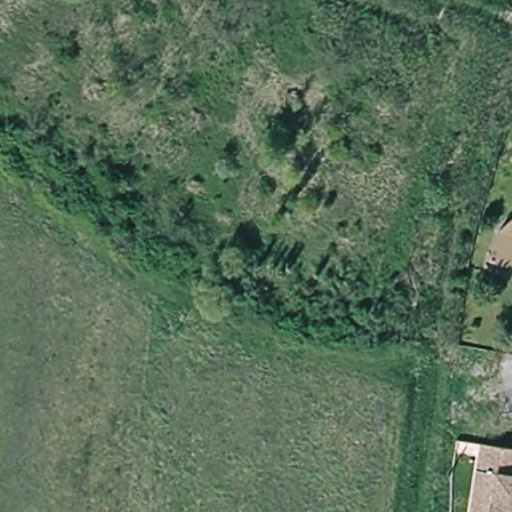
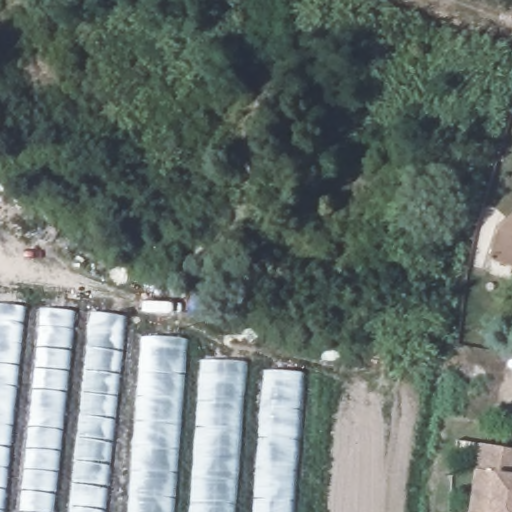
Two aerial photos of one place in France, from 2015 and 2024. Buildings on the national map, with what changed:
unchanged [(497,243),(502,230),(506,222),(512,215),(512,214),(512,265),(492,258),(497,243)]
new [(27,307),(5,512),(0,512),(0,305),(27,307)]
new [(55,512),(19,512),(41,308),(76,312),(55,512)]
new [(91,313),(127,315),(106,512),(70,512),(91,313)]
new [(174,512),(128,512),(142,337),(188,340),(174,512)]
new [(200,361),(247,362),(235,512),(189,512),(200,361)]
new [(304,374),(294,512),(253,512),(263,372),(304,374)]
unchanged [(486,449),(512,453),(512,512),(476,512),(486,449)]

